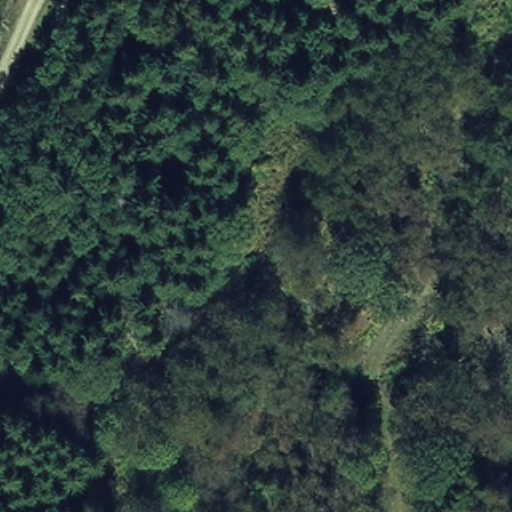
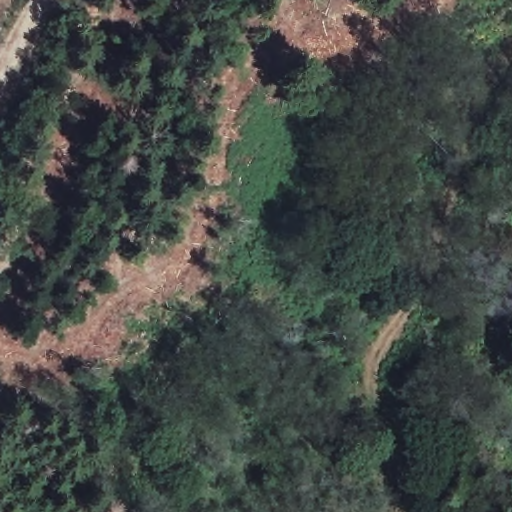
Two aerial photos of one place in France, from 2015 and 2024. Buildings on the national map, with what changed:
[]

